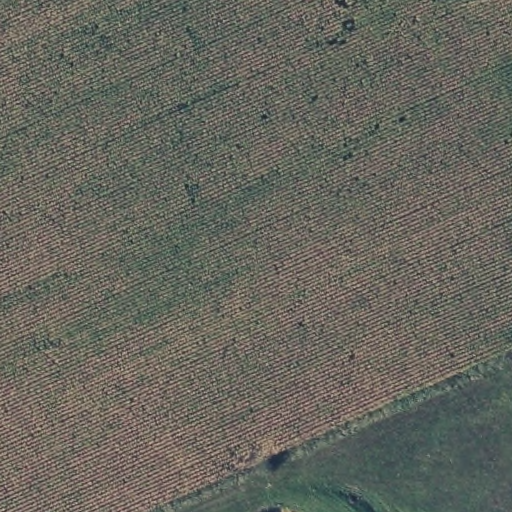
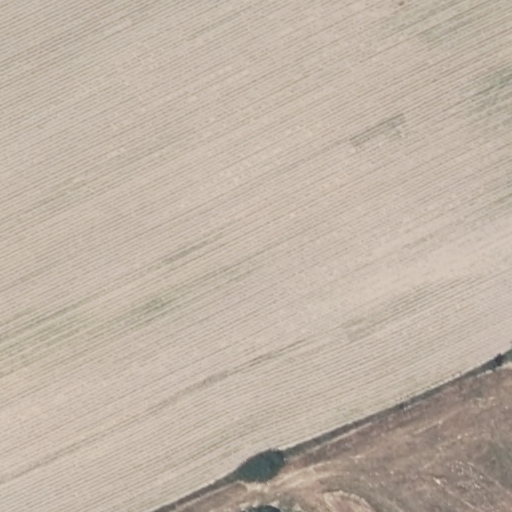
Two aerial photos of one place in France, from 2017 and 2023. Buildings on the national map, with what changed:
[]

